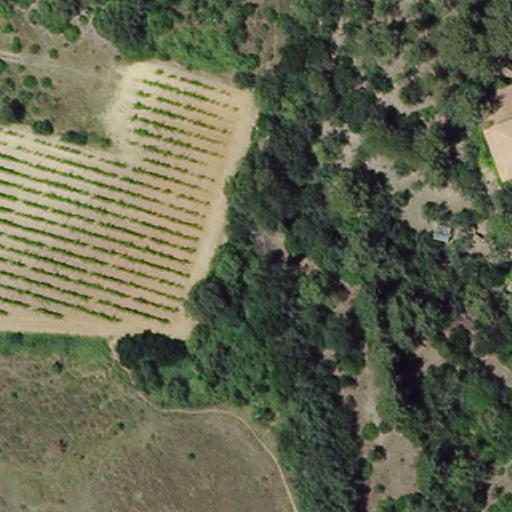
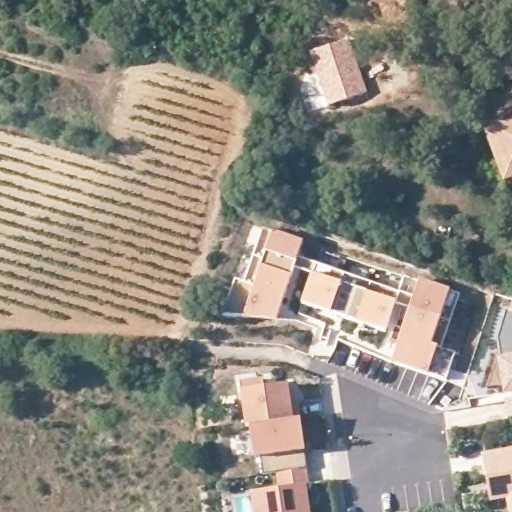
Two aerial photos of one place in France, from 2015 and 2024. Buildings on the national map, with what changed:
new [(347,37),(368,92),(327,106),(306,53),(347,37)]
unchanged [(510,172),(492,130),(485,131),(474,101),(512,87),(512,171),(510,172)]
unchanged [(505,183),(485,131),(492,130),(510,172),(512,171),(512,180),(505,183)]
new [(244,282),(263,228),(272,231),(303,241),(298,256),(415,296),(422,280),(450,290),(460,294),(442,347),(455,352),(445,378),(430,373),(392,363),(410,308),(397,305),(387,333),(301,305),(311,273),(295,268),(278,319),(222,316),(236,277),(244,282)]
new [(512,312),(512,391),(503,392),(497,357),(500,357),(497,339),(506,310),(512,312)]
new [(264,378),(266,388),(289,385),(292,405),(298,404),(313,512),(254,512),(251,492),(279,488),(277,473),(264,475),(262,456),(255,457),(251,428),(246,428),(240,382),(264,378)]
new [(508,418),(505,400),(512,399),(512,417),(508,418)]
new [(509,492),(492,495),(490,480),(485,453),(512,448),(512,509),(509,492)]

